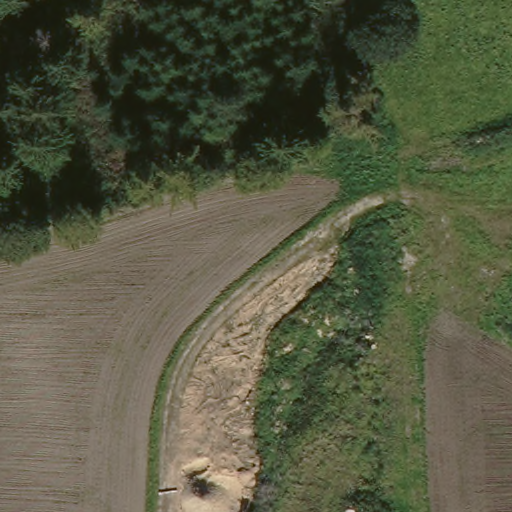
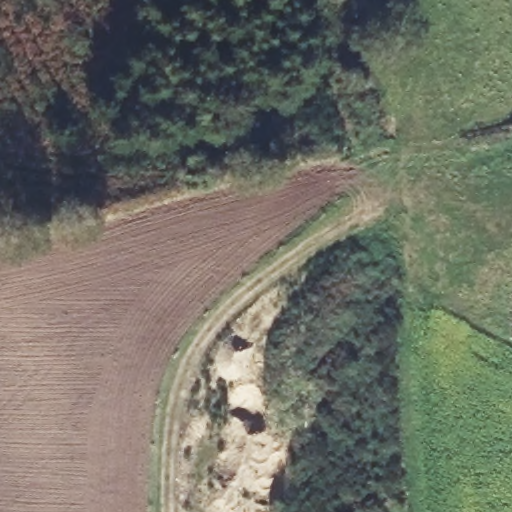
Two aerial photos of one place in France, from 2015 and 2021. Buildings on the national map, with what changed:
unchanged [(512,337),(512,343),(509,341),(512,337)]

